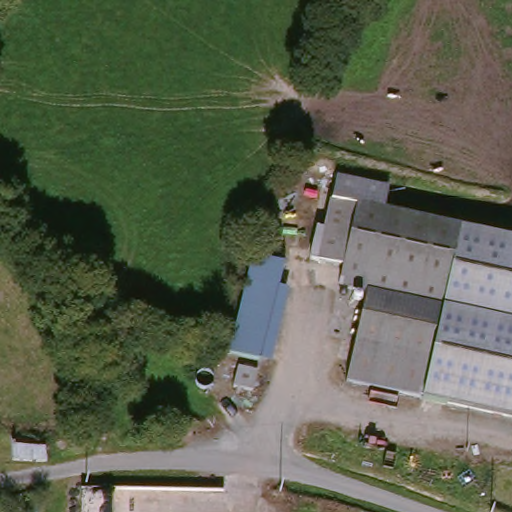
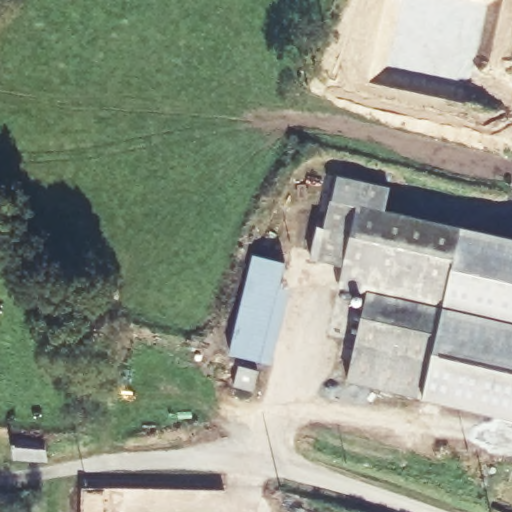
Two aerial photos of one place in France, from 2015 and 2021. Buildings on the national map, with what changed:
unchanged [(334,195),(337,175),(392,187),(386,209),(334,195)]
unchanged [(369,294),(316,282),(334,195),(386,209),(469,231),(423,396),(347,377),(369,294)]
unchanged [(512,241),(512,418),(423,396),(469,231),(512,241)]
unchanged [(259,256),(288,265),(257,363),(228,354),(259,256)]
unchanged [(45,433),(44,459),(16,458),(17,432),(45,433)]

